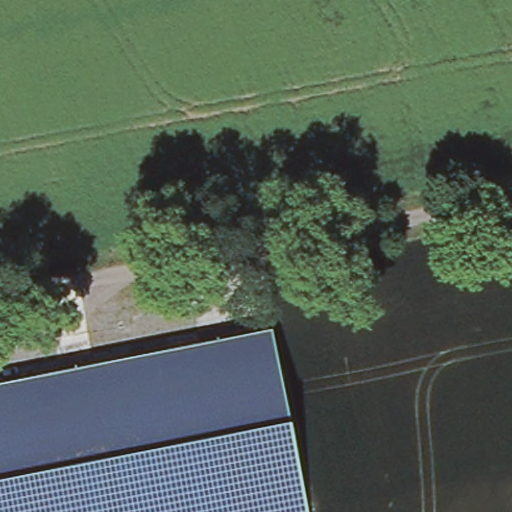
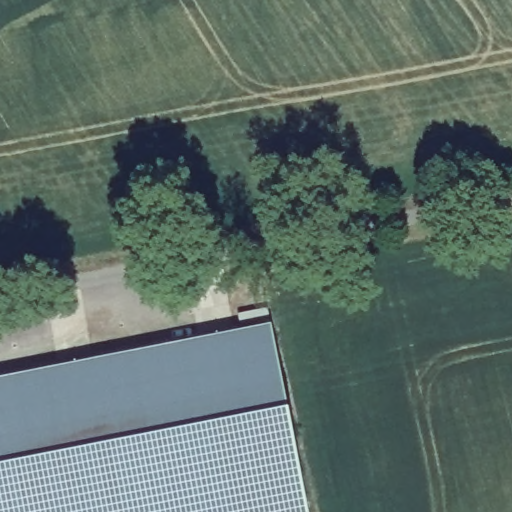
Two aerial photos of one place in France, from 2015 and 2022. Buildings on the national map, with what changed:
unchanged [(271,328),(308,512),(0,512),(0,381),(271,328)]

